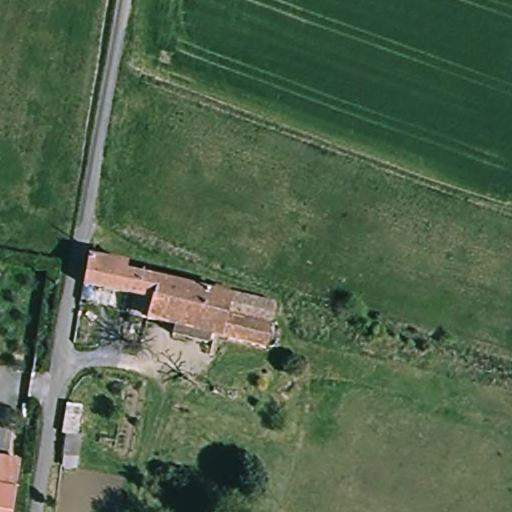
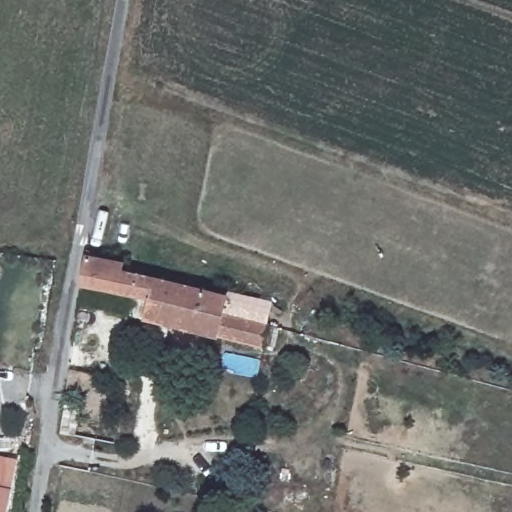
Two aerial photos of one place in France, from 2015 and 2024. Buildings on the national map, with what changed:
unchanged [(172,340),(176,327),(127,315),(132,295),(83,283),(87,255),(125,263),(123,270),(224,293),(225,289),(274,301),(263,347),(208,334),(205,347),(172,340)]
unchanged [(67,403),(78,405),(73,434),(81,436),(76,469),(57,465),(62,432),(67,403)]
unchanged [(20,465),(12,512),(0,512),(0,462),(20,465)]

